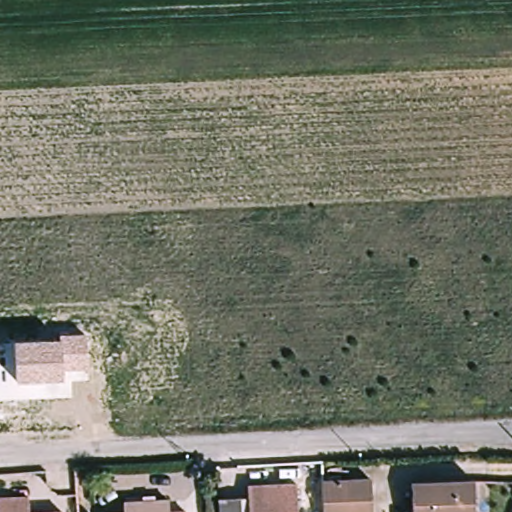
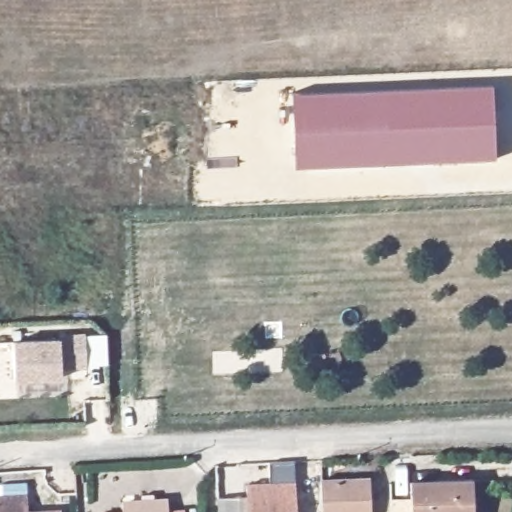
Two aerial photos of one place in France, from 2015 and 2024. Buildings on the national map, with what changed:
new [(492,84),(495,157),(294,167),(291,92),(492,84)]
unchanged [(61,367),(60,378),(15,381),(14,341),(58,340),(60,333),(85,333),(87,369),(61,367)]
unchanged [(371,512),(323,512),(321,477),(370,475),(371,512)]
unchanged [(470,480),(470,512),(408,512),(407,482),(470,480)]
unchanged [(246,484),(295,482),(296,512),(218,512),(218,498),(247,497),(246,484)]
unchanged [(28,511),(61,509),(61,512),(0,512),(0,496),(28,494),(28,511)]
unchanged [(125,512),(125,500),(168,497),(168,512),(125,512)]

